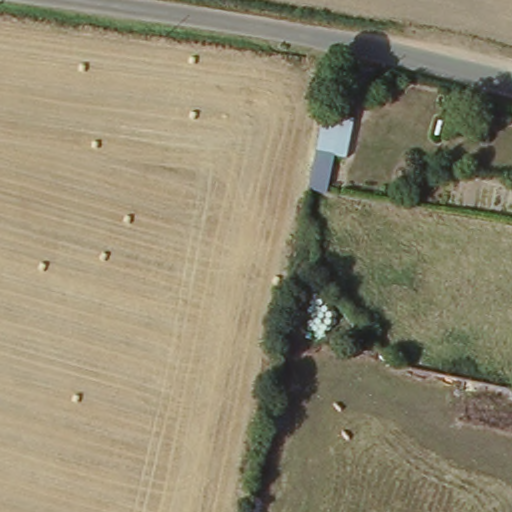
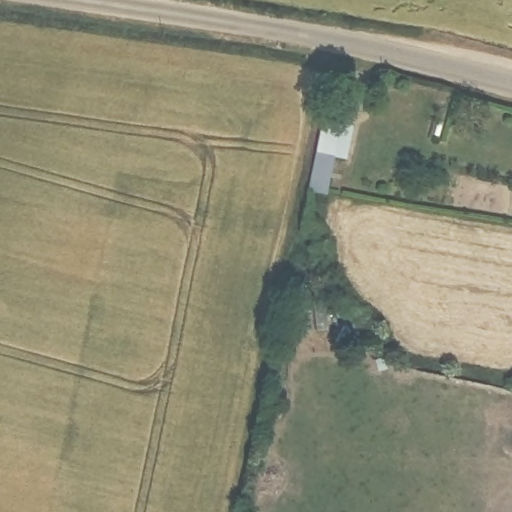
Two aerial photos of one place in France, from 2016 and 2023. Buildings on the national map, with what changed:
unchanged [(350,123),(333,195),(308,191),(325,117),(350,123)]

